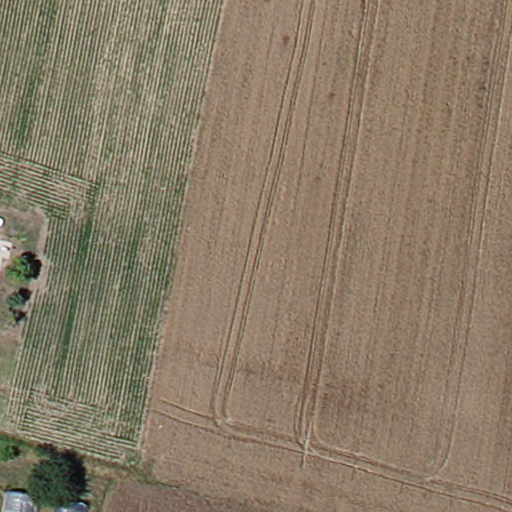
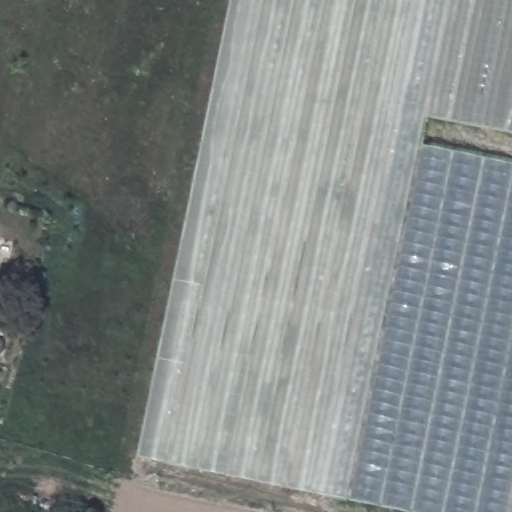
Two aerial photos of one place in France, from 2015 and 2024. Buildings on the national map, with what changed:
new [(426,116),(421,144),(512,162),(512,512),(408,512),(140,457),(234,0),(512,0),(512,132),(426,116)]
unchanged [(39,512),(4,512),(9,486),(42,492),(39,512)]
demolished [(92,503),(90,512),(51,512),(53,497),(92,503)]

